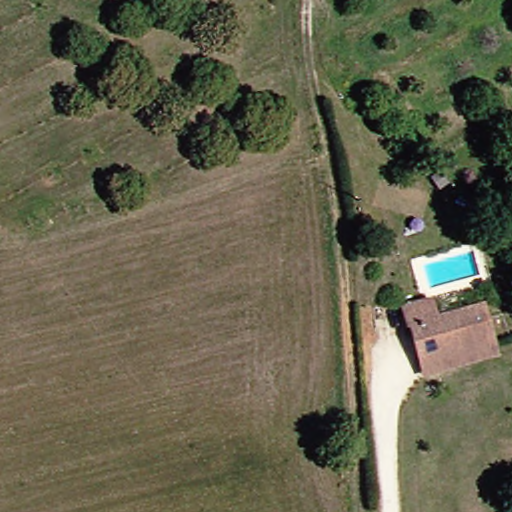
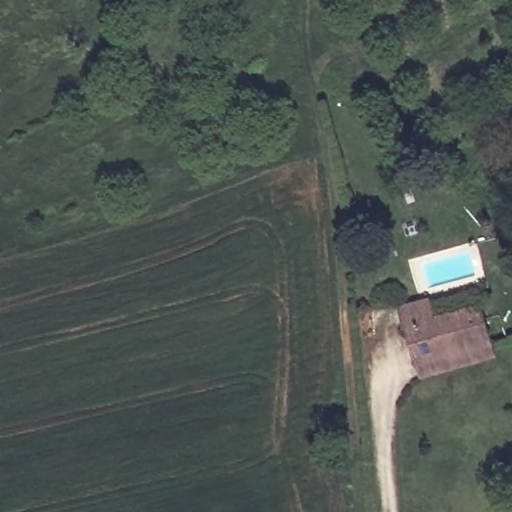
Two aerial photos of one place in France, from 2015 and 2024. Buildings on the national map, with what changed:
unchanged [(419,379),(409,340),(403,341),(397,322),(426,313),(433,333),(479,321),(489,359),(485,361),(419,379)]

